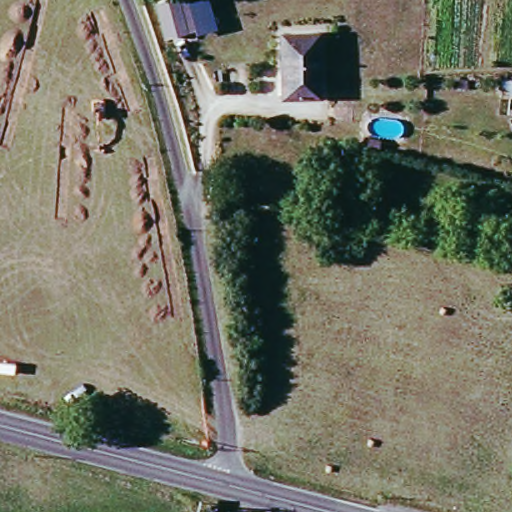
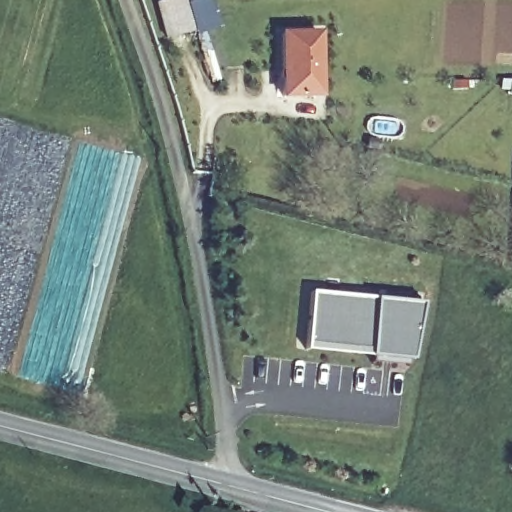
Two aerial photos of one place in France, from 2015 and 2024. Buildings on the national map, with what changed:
new [(169,0),(188,0),(188,2),(195,0),(209,0),(217,28),(197,36),(195,30),(165,39),(155,4),(169,0)]
demolished [(185,51),(168,15),(194,6),(200,16),(193,21),(202,43),(185,51)]
unchanged [(287,90),(287,30),(324,29),(325,90),(287,90)]
new [(425,303),(412,367),(370,361),(371,358),(305,351),(312,292),(425,303)]

